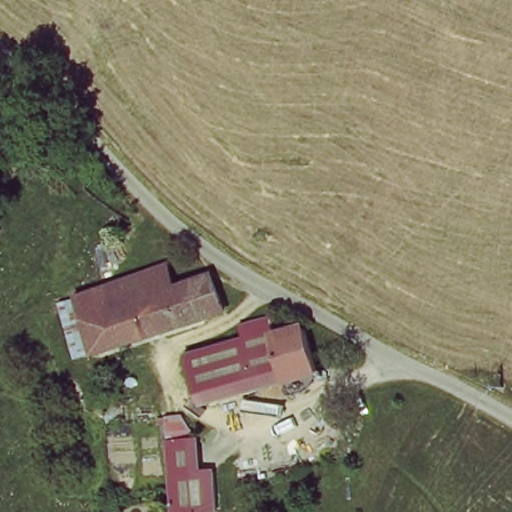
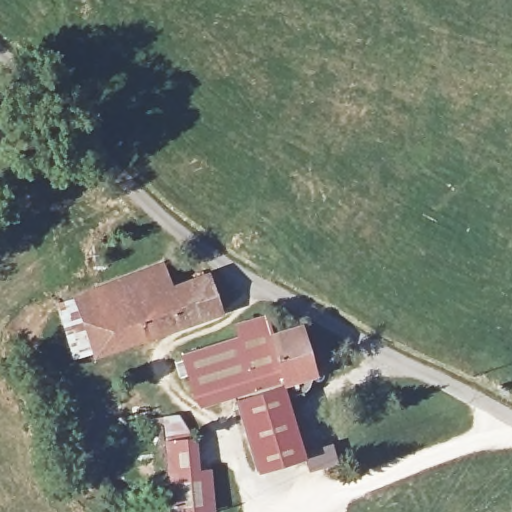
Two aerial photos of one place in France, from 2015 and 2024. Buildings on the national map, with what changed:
unchanged [(85,324),(79,302),(165,277),(170,299),(85,324)]
unchanged [(85,324),(170,299),(208,288),(212,301),(218,322),(193,330),(94,358),(85,324)]
unchanged [(269,328),(282,324),(279,381),(203,404),(189,380),(180,351),(238,333),(234,322),(263,312),(269,328)]
unchanged [(282,323),(292,320),(309,371),(279,381),(282,324),(282,323)]
new [(234,394),(279,381),(283,379),(304,458),(256,472),(234,394)]
unchanged [(161,454),(158,428),(171,426),(187,438),(187,444),(195,512),(169,512),(161,454)]
new [(211,469),(214,512),(195,512),(190,471),(211,469)]

